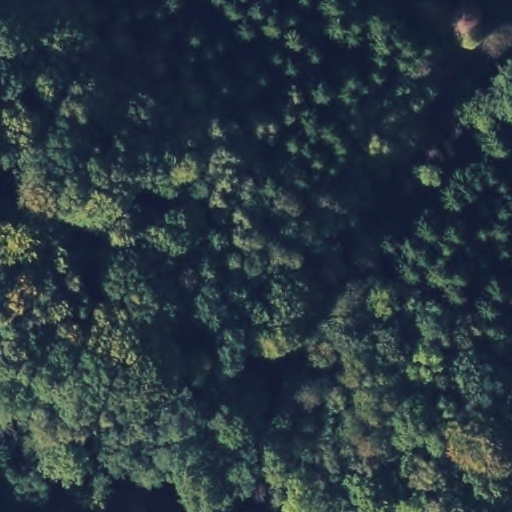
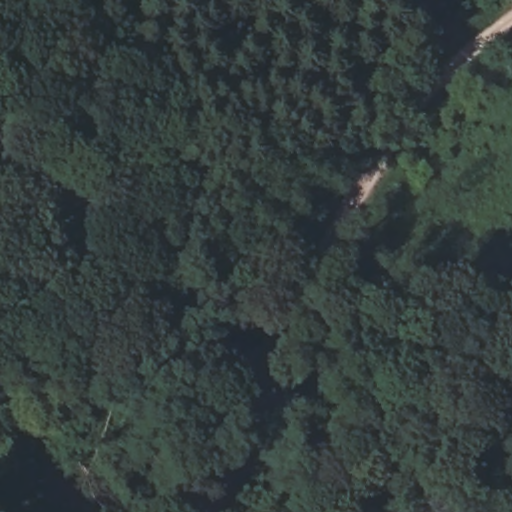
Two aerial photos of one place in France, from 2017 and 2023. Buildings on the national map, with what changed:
unchanged [(80,512),(30,446),(75,416),(143,512),(80,512)]

